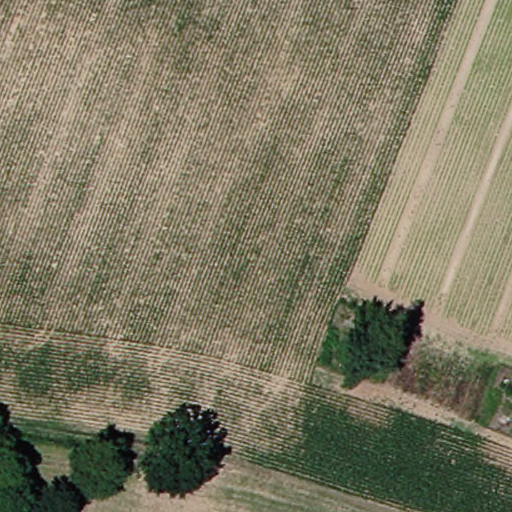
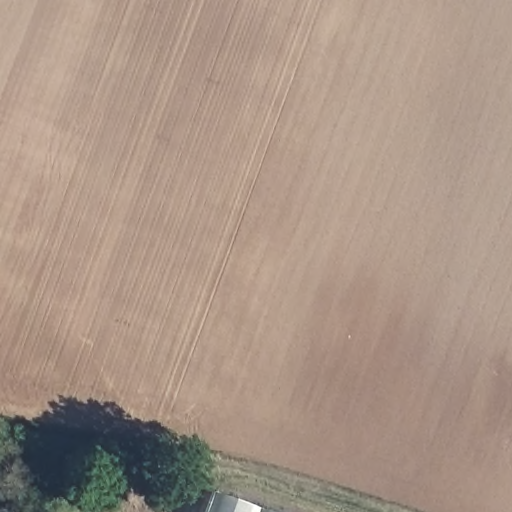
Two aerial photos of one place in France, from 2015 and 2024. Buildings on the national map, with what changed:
new [(216,491),(275,512),(208,512),(216,491)]

